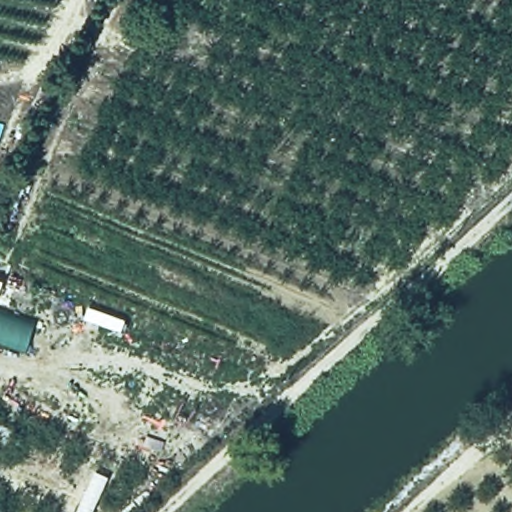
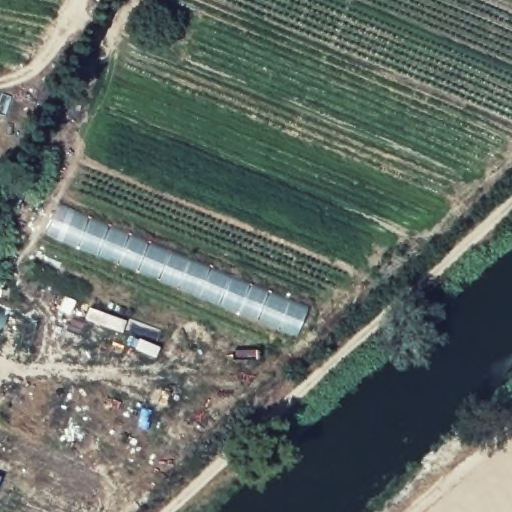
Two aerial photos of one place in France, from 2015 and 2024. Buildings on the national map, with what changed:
new [(296,335),(46,233),(57,206),(308,309),(296,335)]
unchanged [(0,294),(0,281),(4,283),(0,294)]
new [(0,344),(0,310),(34,321),(25,353),(0,344)]

